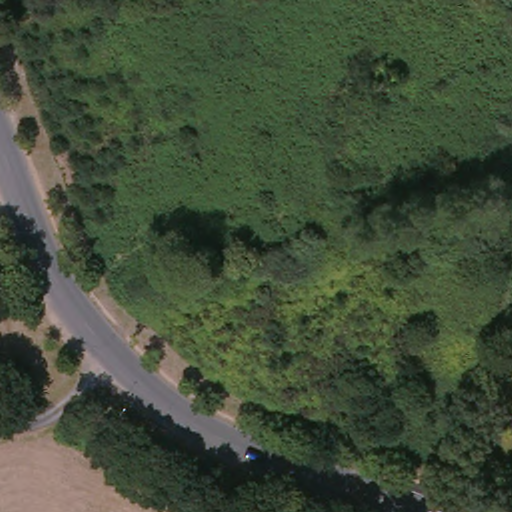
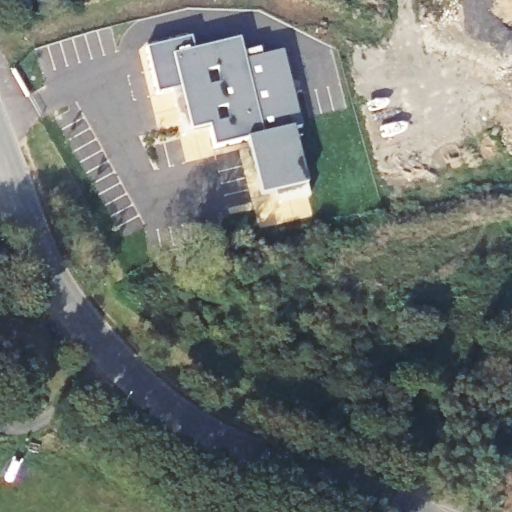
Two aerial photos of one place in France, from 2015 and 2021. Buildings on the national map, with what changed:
unchanged [(109,2),(94,7),(92,0),(108,0),(109,2)]
unchanged [(14,19),(0,25),(0,6),(7,4),(14,19)]
new [(188,35),(191,47),(237,36),(242,57),(280,48),(300,125),(292,126),(307,182),(262,194),(247,138),(213,146),(207,125),(190,129),(178,86),(154,92),(142,46),(188,35)]

